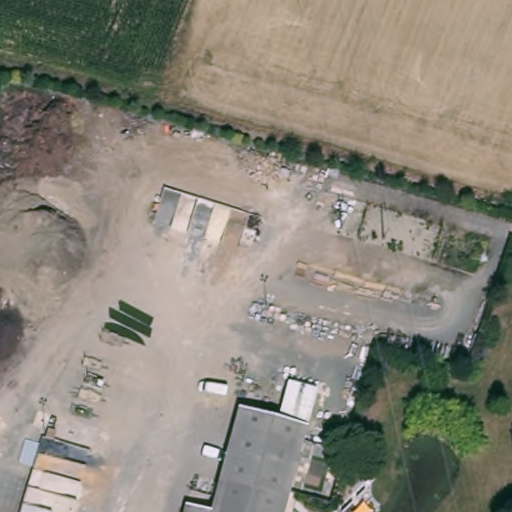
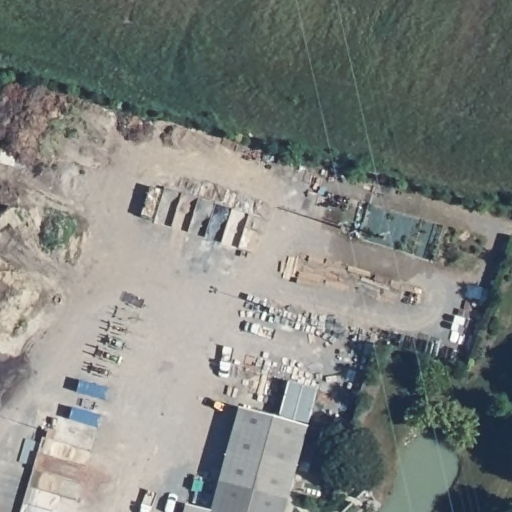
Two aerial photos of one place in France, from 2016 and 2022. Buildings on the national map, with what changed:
unchanged [(214,512),(242,408),(310,427),(287,512),(214,512)]

